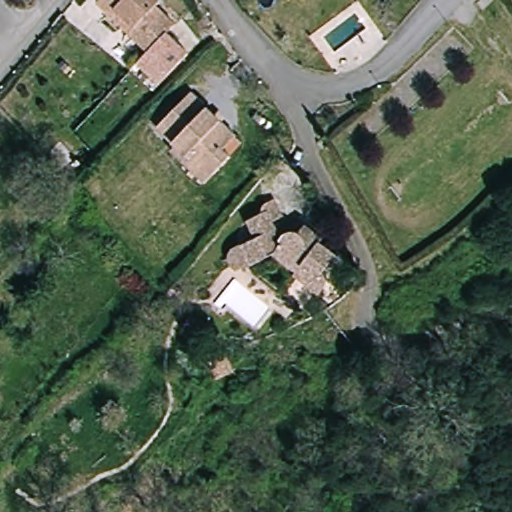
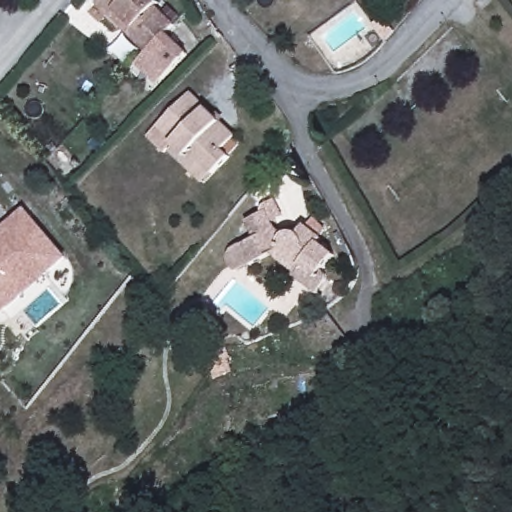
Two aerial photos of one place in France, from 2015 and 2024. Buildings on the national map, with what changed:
unchanged [(100,2),(102,0),(164,0),(159,8),(178,23),(150,51),(100,2)]
unchanged [(173,147),(179,142),(160,123),(197,89),(240,135),(246,141),(233,155),(216,171),(206,181),(173,147)]
unchanged [(325,285),(323,288),(321,291),(320,292),(297,273),(300,270),(277,250),(253,261),(244,243),(246,239),(258,234),(254,224),(251,216),(261,211),(272,206),(280,222),(287,228),(293,225),(301,229),(308,221),(327,236),(325,240),(342,254),(324,275),(325,278),(325,282),(325,285)]
new [(26,209),(68,258),(5,312),(0,306),(0,231),(26,209)]

